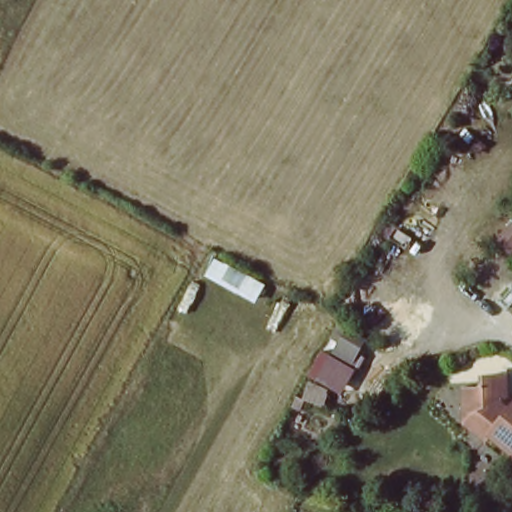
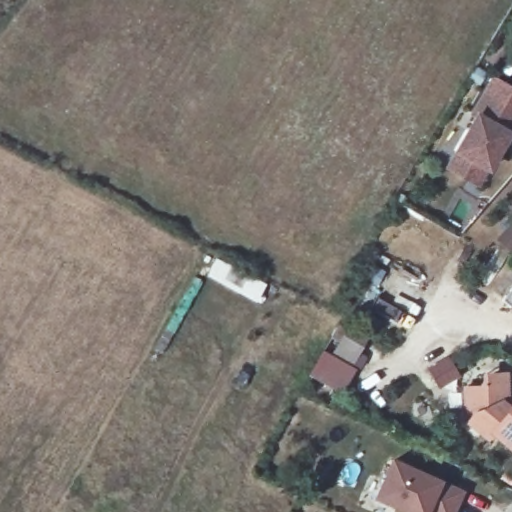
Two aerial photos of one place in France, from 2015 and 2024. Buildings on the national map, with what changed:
new [(480,93),(512,111),(512,137),(511,139),(509,134),(487,171),(453,152),(474,111),(480,93)]
unchanged [(508,308),(512,303),(512,312),(508,308)]
unchanged [(333,341),(339,330),(348,335),(349,333),(367,342),(360,355),(354,367),(336,357),(342,346),(333,341)]
unchanged [(496,441),(492,446),(467,426),(457,410),(454,391),(482,385),(485,378),(512,377),(512,452),(496,441)]
new [(462,493),(454,512),(407,512),(377,499),(392,463),(462,493)]

